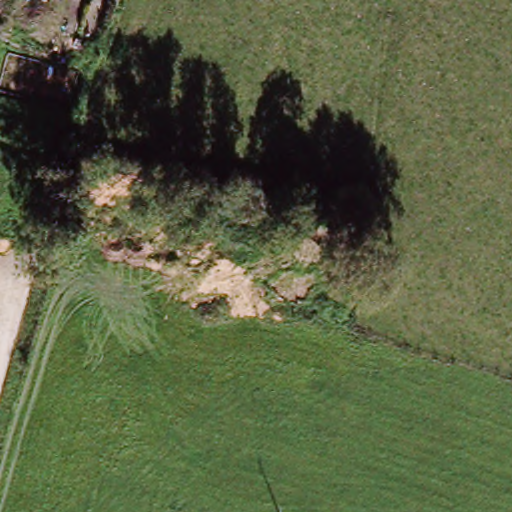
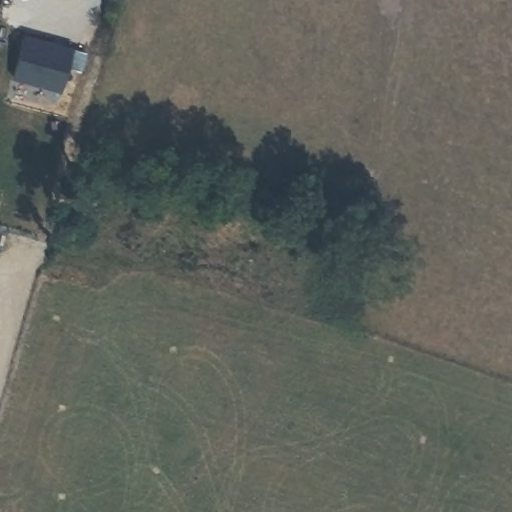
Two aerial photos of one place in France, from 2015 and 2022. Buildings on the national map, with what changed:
new [(74,47),(62,91),(11,77),(24,34),(74,47)]

